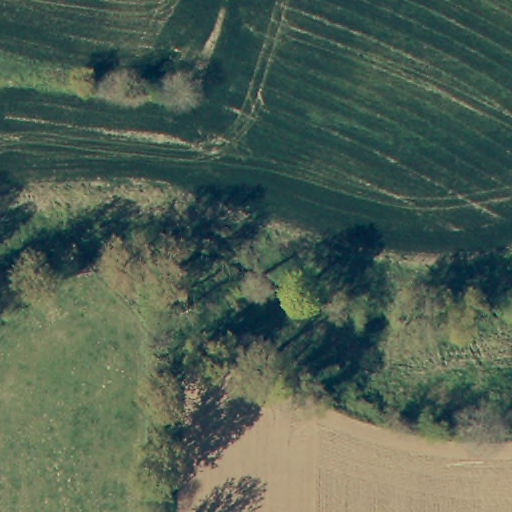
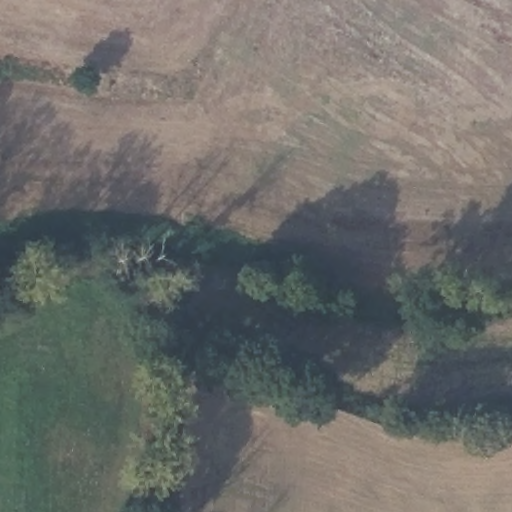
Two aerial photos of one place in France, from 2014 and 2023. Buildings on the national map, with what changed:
[]

